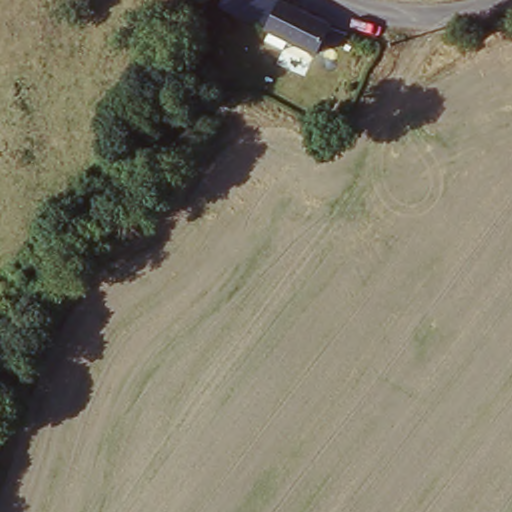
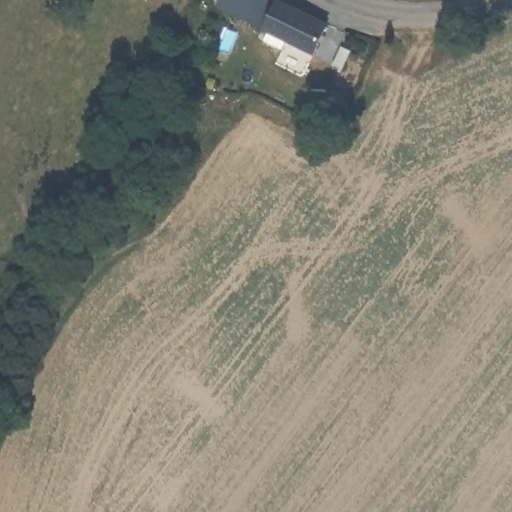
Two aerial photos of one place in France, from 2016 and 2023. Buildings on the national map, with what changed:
unchanged [(327,26),(315,55),(218,12),(223,0),(265,0),(327,26)]

